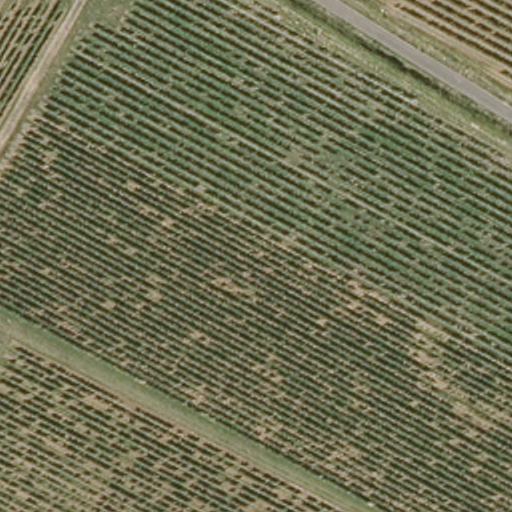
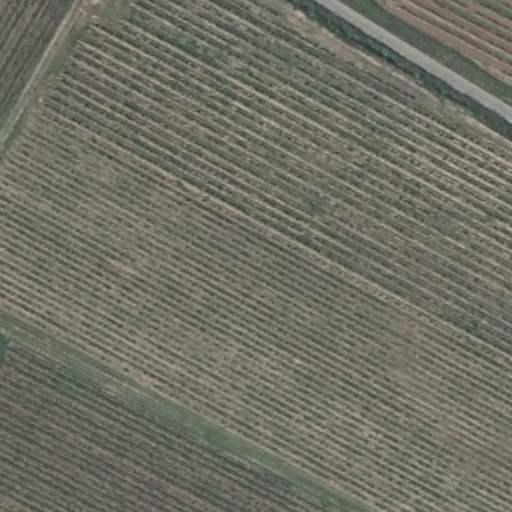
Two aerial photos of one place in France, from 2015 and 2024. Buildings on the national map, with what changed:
[]

